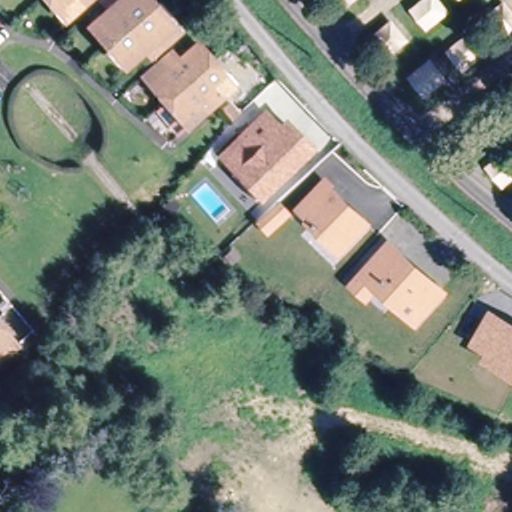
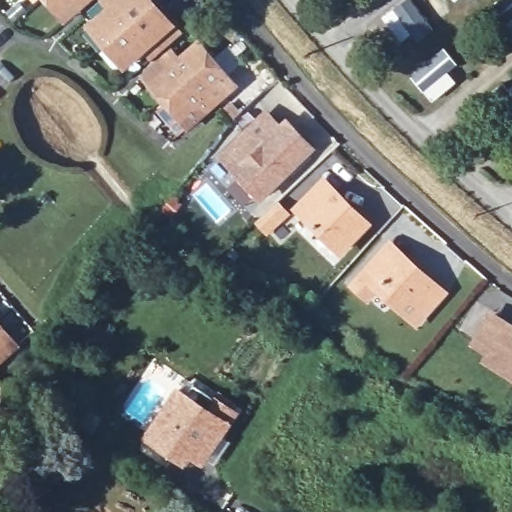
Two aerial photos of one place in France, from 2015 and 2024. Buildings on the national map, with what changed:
unchanged [(76,1),(58,18),(43,0),(92,0),(93,1),(84,10),(76,1)]
unchanged [(154,54),(136,69),(102,30),(119,14),(113,8),(122,0),(123,0),(128,6),(136,0),(156,0),(181,29),(164,45),(171,53),(162,61),(154,54)]
unchanged [(215,111),(207,104),(190,119),(160,85),(178,69),(171,62),(181,53),(187,61),(205,45),(235,79),(217,94),(224,103),(215,111)]
unchanged [(256,200),(232,176),(236,172),(222,157),(266,114),(280,129),(286,124),(310,149),(256,200)]
unchanged [(344,252),(300,210),(328,181),(372,223),(344,252)]
unchanged [(273,230),(262,219),(281,203),(291,214),(273,230)]
unchanged [(405,309),(381,285),(371,296),(357,283),(394,244),(447,294),(430,313),(420,323),(405,309)]
unchanged [(512,323),(512,378),(485,362),(487,355),(469,344),(488,309),(512,323)]
unchanged [(0,342),(0,318),(12,331),(0,342)]
unchanged [(0,351),(2,354),(0,355),(0,351)]
new [(177,386),(189,394),(194,386),(214,399),(216,396),(240,411),(204,467),(191,459),(185,466),(143,437),(177,386)]

